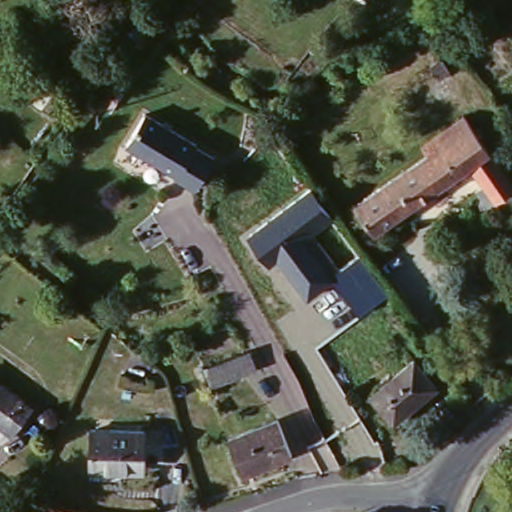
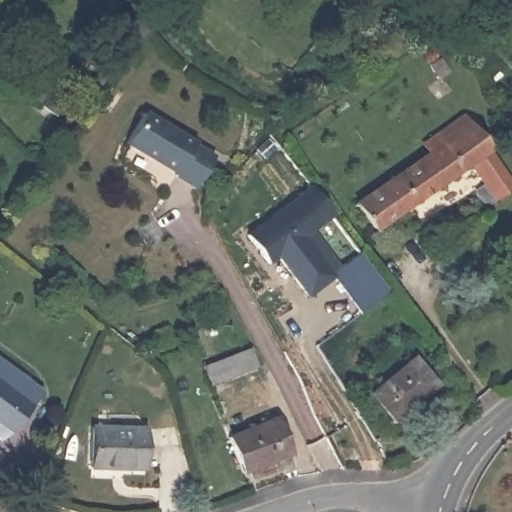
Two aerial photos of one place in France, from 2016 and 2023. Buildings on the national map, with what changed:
unchanged [(496,25),(489,31),(477,20),(484,14),(496,25)]
unchanged [(143,106),(214,150),(194,187),(123,142),(143,106)]
unchanged [(512,188),(491,203),(467,168),(380,225),(360,196),(426,151),(421,142),(469,110),(512,173),(512,188)]
unchanged [(246,234),(314,185),(335,216),(314,234),(340,268),(361,253),(387,291),(358,312),(333,277),(307,298),(278,258),(268,265),(246,234)]
unchanged [(259,366),(212,383),(206,365),(252,348),(259,366)]
unchanged [(435,382),(393,417),(370,390),(414,355),(435,382)]
new [(49,393),(25,428),(0,411),(0,362),(49,393)]
demolished [(17,399),(0,420),(0,387),(17,399)]
unchanged [(288,452),(239,470),(227,435),(277,418),(288,452)]
unchanged [(143,425),(143,460),(111,461),(110,466),(93,466),(93,425),(143,425)]

